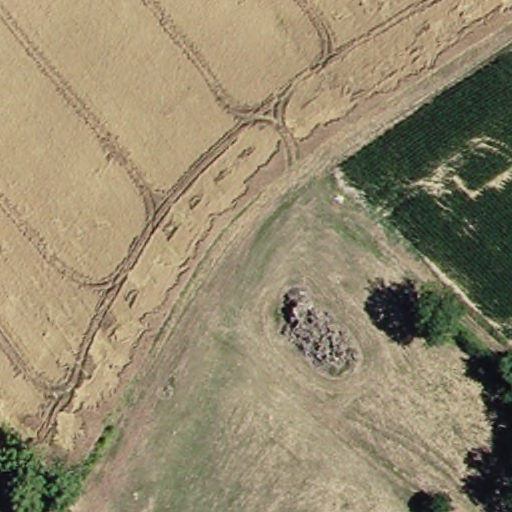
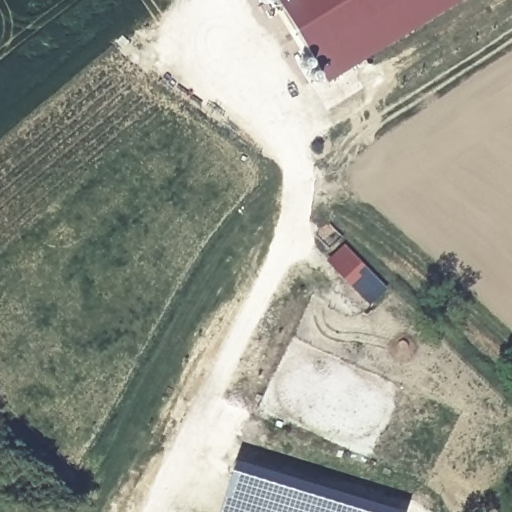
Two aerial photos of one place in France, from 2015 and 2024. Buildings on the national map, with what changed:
new [(328,69),(286,0),(440,0),(328,69)]
new [(395,512),(230,512),(242,469),(395,512)]

